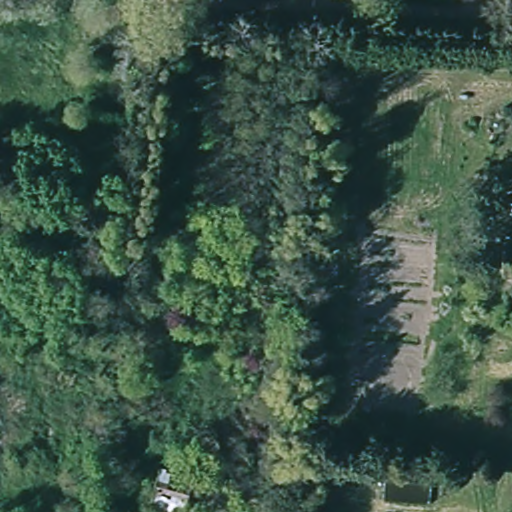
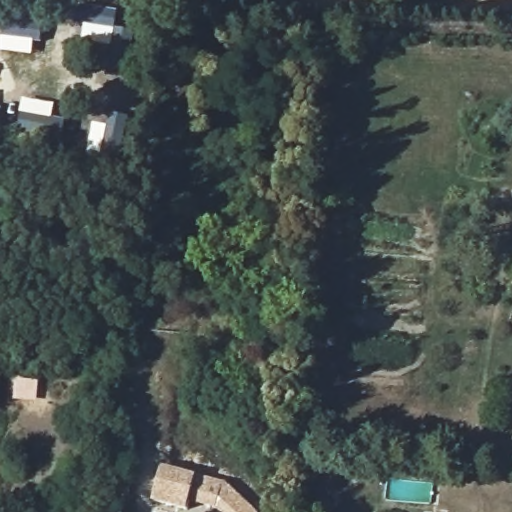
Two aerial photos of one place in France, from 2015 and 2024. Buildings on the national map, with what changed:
new [(195,475),(196,475),(226,482),(253,507),(252,510),(254,512),(221,512),(217,508),(201,503),(189,507),(187,510),(153,501),(161,466),(195,475)]
demolished [(227,485),(257,512),(188,512),(155,505),(164,470),(227,485)]

